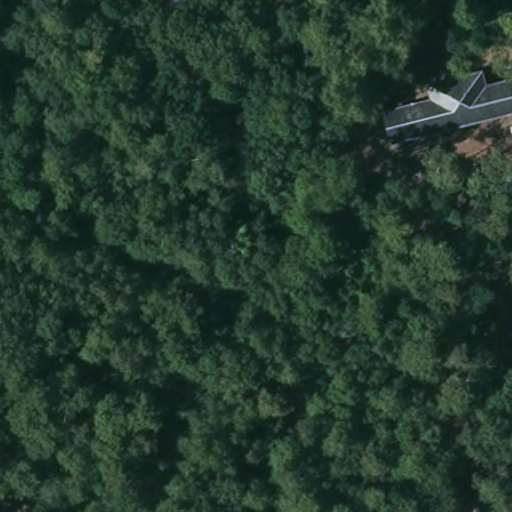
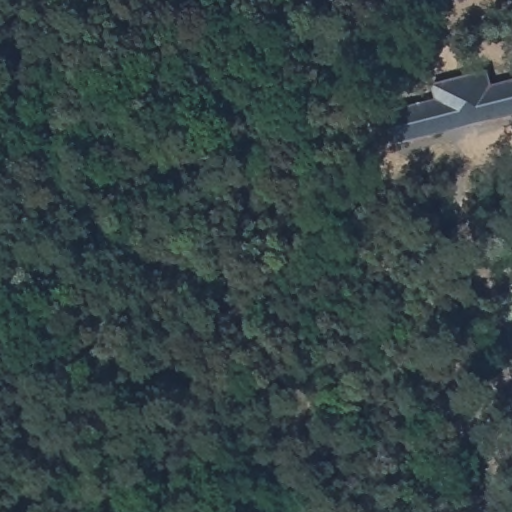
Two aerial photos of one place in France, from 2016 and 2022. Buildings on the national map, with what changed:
unchanged [(474,74),(477,87),(512,80),(512,113),(388,141),(381,111),(425,100),(422,85),(474,74)]

